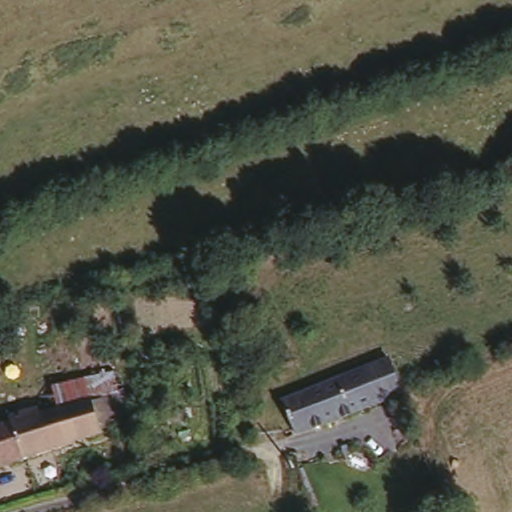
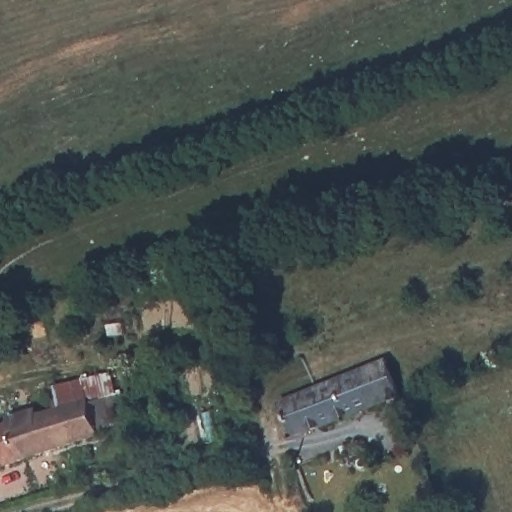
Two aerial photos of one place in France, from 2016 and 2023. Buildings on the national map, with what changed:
unchanged [(292,433),(292,432),(278,402),(384,358),(400,393),(292,433)]
unchanged [(38,401),(42,409),(89,394),(97,391),(104,411),(96,414),(95,415),(98,424),(0,456),(0,417),(7,414),(6,410),(38,401)]

